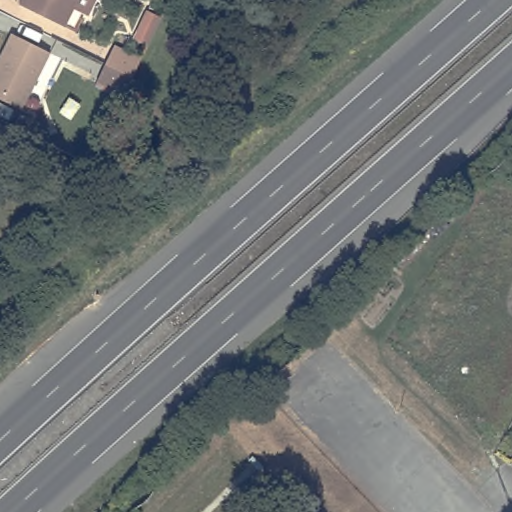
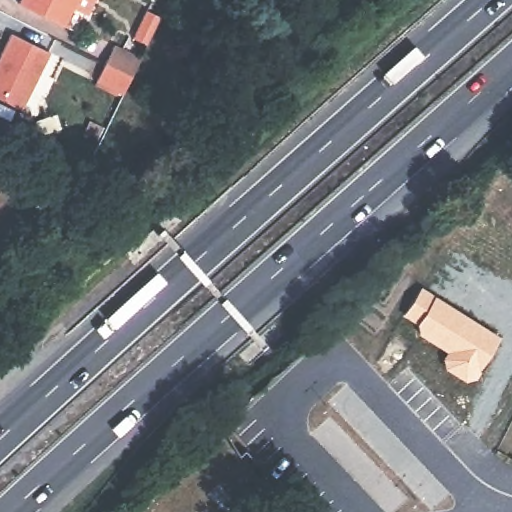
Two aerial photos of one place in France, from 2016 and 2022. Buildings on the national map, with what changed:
unchanged [(25,0),(96,0),(90,12),(77,7),(68,27),(22,5),(25,0)]
unchanged [(52,52),(25,110),(0,99),(0,64),(14,34),(52,52)]
unchanged [(107,63),(116,46),(142,58),(134,76),(125,93),(99,80),(107,63)]
new [(419,289),(498,339),(473,378),(465,380),(446,368),(444,359),(448,352),(418,333),(416,324),(417,323),(403,314),(419,289)]

